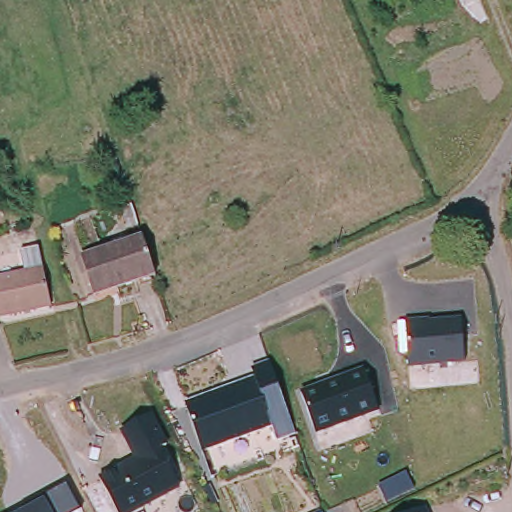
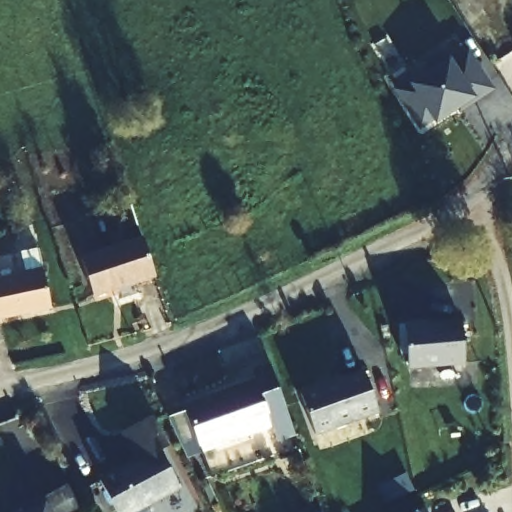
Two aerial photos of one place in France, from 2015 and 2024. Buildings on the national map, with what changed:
new [(412,79),(416,83),(449,61),(451,63),(469,51),(493,89),(472,102),(470,99),(437,120),(436,118),(422,127),(397,90),(412,79)]
unchanged [(146,237),(157,275),(95,295),(82,257),(146,237)]
unchanged [(49,307),(0,317),(0,279),(40,270),(49,307)]
unchanged [(462,318),(465,366),(409,368),(406,322),(462,318)]
unchanged [(296,431),(276,438),(272,426),(202,449),(183,401),(253,376),(251,367),(271,360),(296,431)]
unchanged [(366,368),(380,411),(315,435),(301,391),(366,368)]
new [(203,452),(189,459),(169,416),(187,410),(202,449),(203,452)]
unchanged [(121,431),(161,411),(177,446),(167,451),(186,488),(138,512),(117,512),(101,477),(136,462),(121,431)]
unchanged [(81,512),(15,512),(69,484),(82,511),(81,512)]
unchanged [(414,512),(427,506),(430,512),(414,512)]
unchanged [(316,512),(324,509),(325,512),(316,512)]

